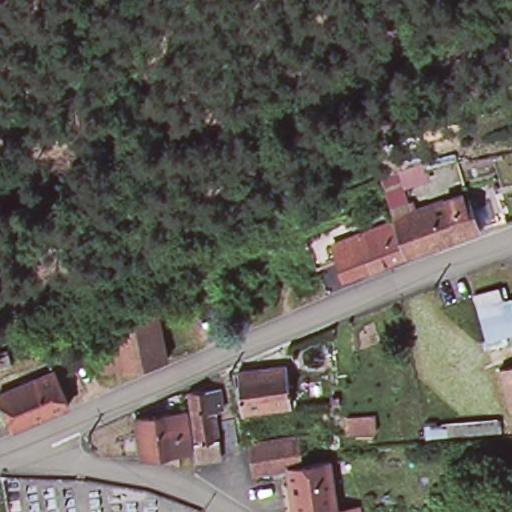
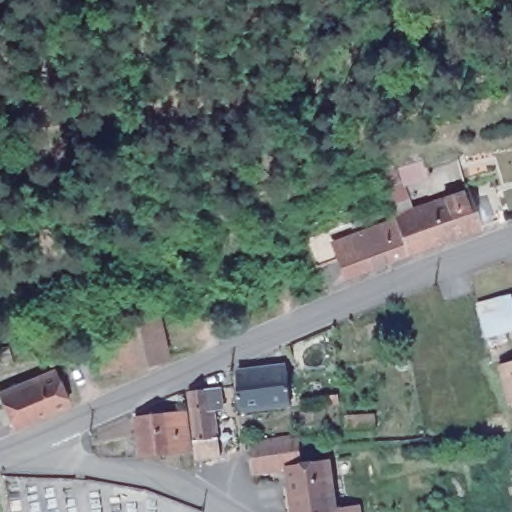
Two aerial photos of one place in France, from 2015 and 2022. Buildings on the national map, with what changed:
unchanged [(312,275),(301,247),(309,245),(349,229),(354,242),(393,227),(391,223),(374,180),(378,179),(394,176),(408,217),(464,199),(477,236),(404,260),(342,284),(335,266),(320,271),(312,275)]
unchanged [(507,292),(512,311),(512,322),(484,329),(477,299),(507,292)]
unchanged [(108,322),(153,312),(159,339),(114,348),(108,322)]
unchanged [(114,352),(114,348),(159,339),(165,365),(120,375),(120,374),(99,379),(93,357),(114,352)]
unchanged [(11,347),(15,362),(0,366),(0,350),(11,347)]
unchanged [(499,368),(512,364),(512,407),(509,407),(499,368)]
unchanged [(242,373),(289,368),(294,407),(247,413),(242,373)]
unchanged [(1,395),(58,373),(72,408),(15,429),(1,395)]
unchanged [(235,447),(218,450),(219,457),(196,461),(186,395),(209,392),(218,391),(221,418),(213,419),(214,423),(231,421),(235,447)]
unchanged [(335,397),(342,397),(343,406),(336,407),(335,397)]
unchanged [(172,415),(184,412),(190,453),(178,455),(141,459),(135,420),(172,415)]
unchanged [(351,418),(380,417),(380,434),(351,435),(351,418)]
unchanged [(250,445),(298,440),(301,466),(286,468),(286,471),(254,474),(250,445)]
unchanged [(286,471),(286,468),(301,466),(329,462),(334,509),(355,507),(356,512),(293,512),(286,471)]

